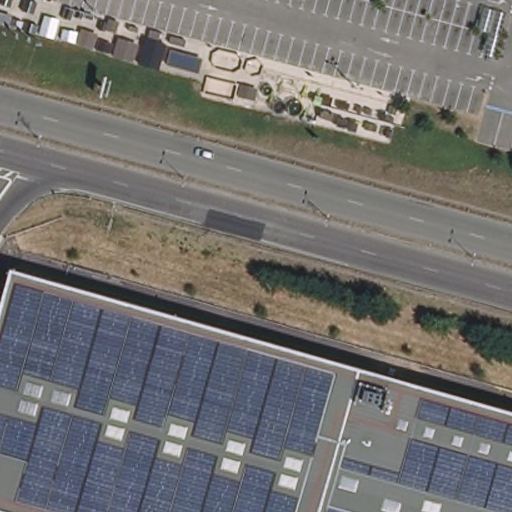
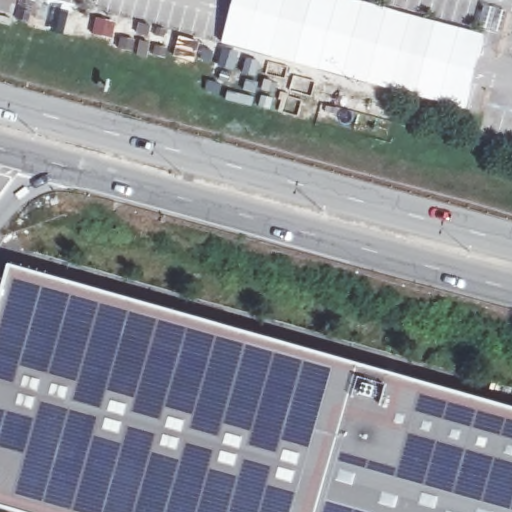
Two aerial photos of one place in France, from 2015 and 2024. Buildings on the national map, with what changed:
new [(231,0),(359,0),(411,15),(485,33),(465,112),(345,77),(270,58),(219,43),(231,0)]
unchanged [(13,512),(0,508),(0,306),(11,268),(512,410),(512,512),(13,512)]

